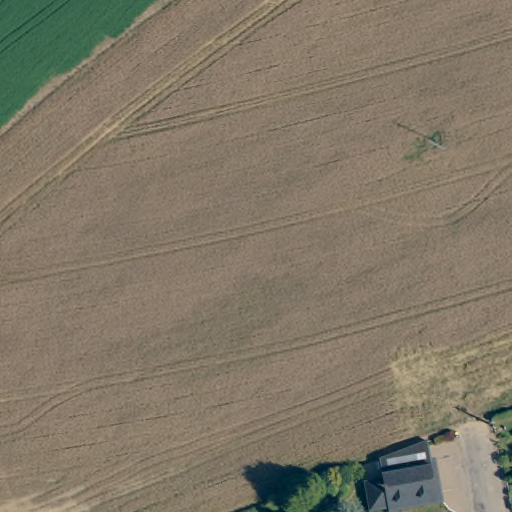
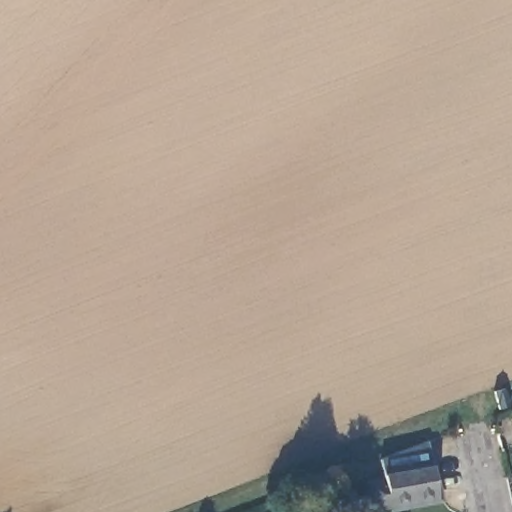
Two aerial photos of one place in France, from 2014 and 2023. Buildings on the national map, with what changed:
unchanged [(396,512),(396,509),(383,512),(379,512),(373,484),(389,479),(385,461),(431,444),(442,499),(444,505),(413,512),(396,512)]

